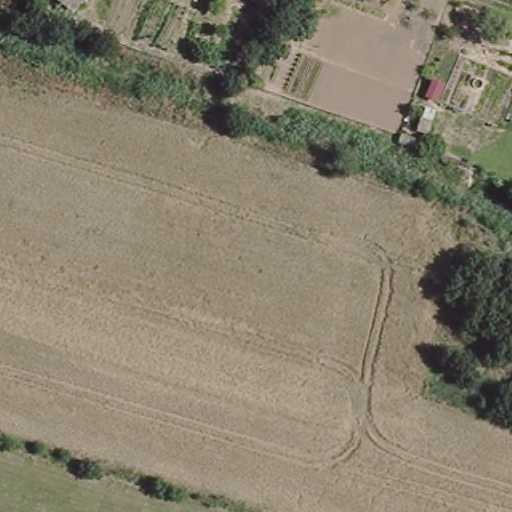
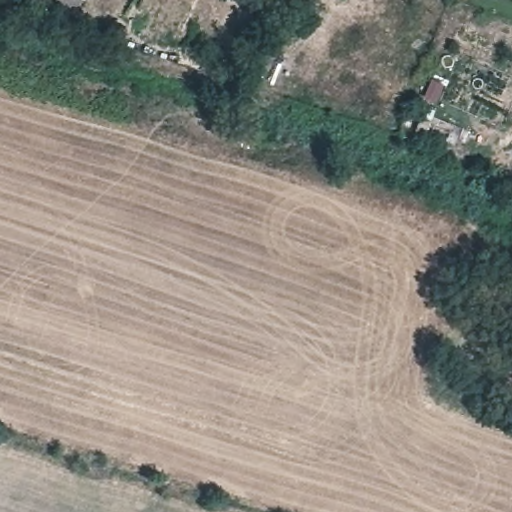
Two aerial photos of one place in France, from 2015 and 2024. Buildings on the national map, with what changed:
unchanged [(75,13),(56,1),(57,0),(84,0),(85,1),(75,13)]

